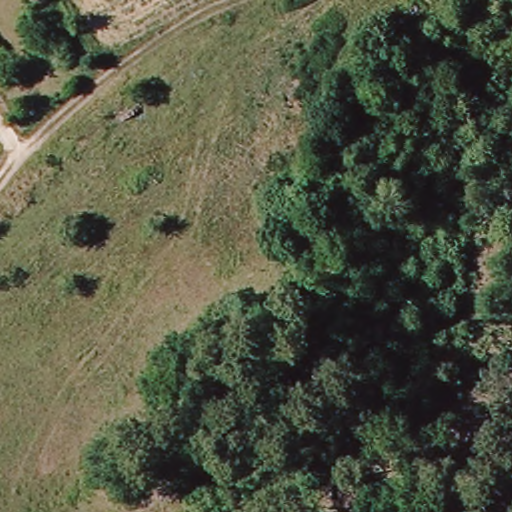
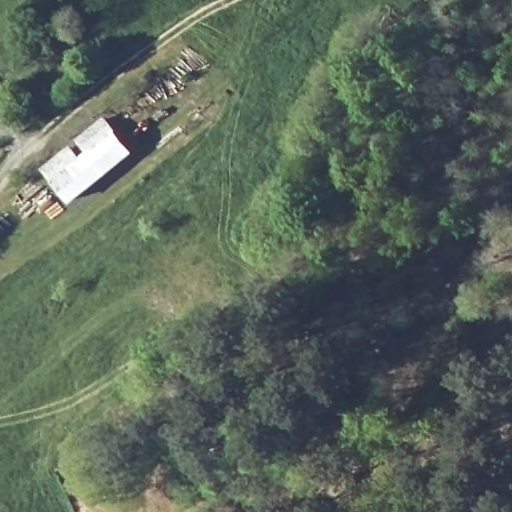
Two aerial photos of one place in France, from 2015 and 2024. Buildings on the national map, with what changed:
new [(70,203),(52,180),(42,167),(71,145),(82,156),(87,151),(77,139),(106,116),(134,150),(70,203)]

